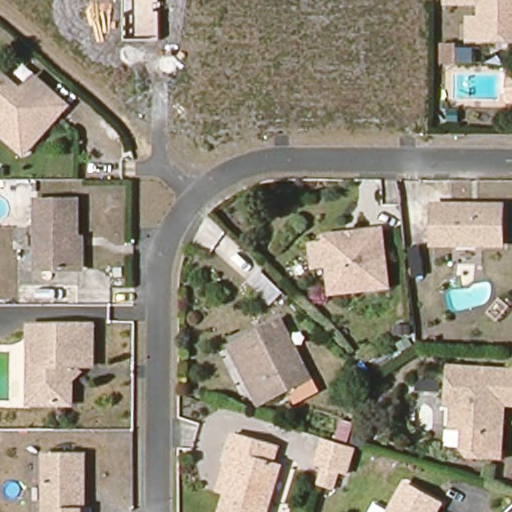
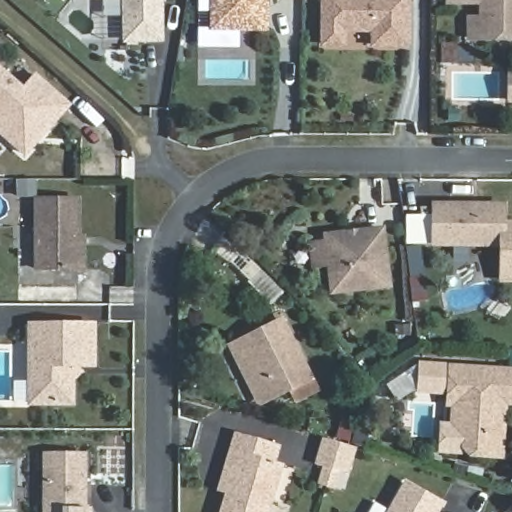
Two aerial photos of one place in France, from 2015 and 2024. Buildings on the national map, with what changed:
unchanged [(125,40),(124,0),(161,0),(161,40),(125,40)]
new [(208,31),(208,0),(268,0),(268,30),(208,31)]
new [(347,47),(320,48),(321,0),(410,0),(411,49),(371,47),(371,32),(346,32),(347,47)]
unchanged [(449,7),(450,0),(512,0),(512,43),(510,43),(483,43),(471,43),(471,23),(483,23),(483,7),(449,7)]
unchanged [(0,133),(0,71),(22,91),(34,77),(66,106),(36,139),(24,154),(9,141),(0,133)]
unchanged [(512,81),(512,96),(511,96),(511,81),(512,81)]
unchanged [(80,269),(39,269),(39,200),(80,200),(80,237),(86,238),(86,269),(80,269)]
unchanged [(448,205),(481,206),(505,206),(504,245),(466,245),(434,245),(434,240),(435,205),(448,205)]
new [(512,221),(512,283),(498,283),(493,245),(504,245),(505,221),(512,221)]
unchanged [(392,286),(335,292),(332,265),(317,266),(314,244),(329,242),(328,236),(349,234),(360,233),(384,230),(392,286)]
unchanged [(282,322),(309,379),(268,399),(262,402),(234,346),(240,342),(282,322)]
unchanged [(64,403),(32,403),(32,325),(95,325),(95,365),(76,365),(83,371),(74,377),(74,392),(74,403),(64,403)]
unchanged [(474,458),(468,452),(449,451),(453,372),(512,375),(512,407),(508,406),(507,416),(505,460),(474,458)]
unchanged [(279,445),(274,461),(283,464),(268,512),(224,512),(230,492),(222,490),(229,466),(239,433),(279,445)]
unchanged [(324,490),(318,487),(322,472),(314,470),(323,443),(337,447),(351,452),(348,462),(343,479),(342,478),(335,476),(330,491),(324,490)]
unchanged [(86,455),(86,508),(93,508),(93,512),(48,512),(48,455),(86,455)]
unchanged [(408,483),(443,503),(438,512),(392,512),(408,483)]

